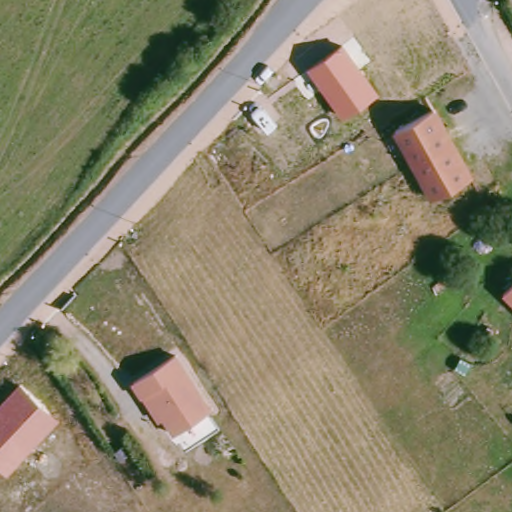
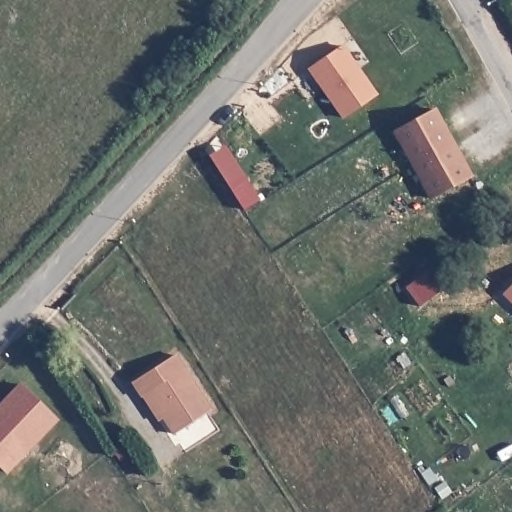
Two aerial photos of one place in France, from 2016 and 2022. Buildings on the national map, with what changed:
unchanged [(379,93),(342,119),(307,68),(345,45),(379,93)]
unchanged [(396,130),(435,109),(472,178),(433,198),(396,130)]
new [(249,215),(227,184),(214,162),(229,152),(242,174),(263,206),(249,215)]
unchanged [(512,283),(512,297),(505,290),(512,283)]
unchanged [(142,394),(134,379),(175,352),(212,407),(175,431),(165,415),(159,419),(142,394)]
unchanged [(59,419),(8,475),(0,467),(0,406),(21,385),(59,419)]

